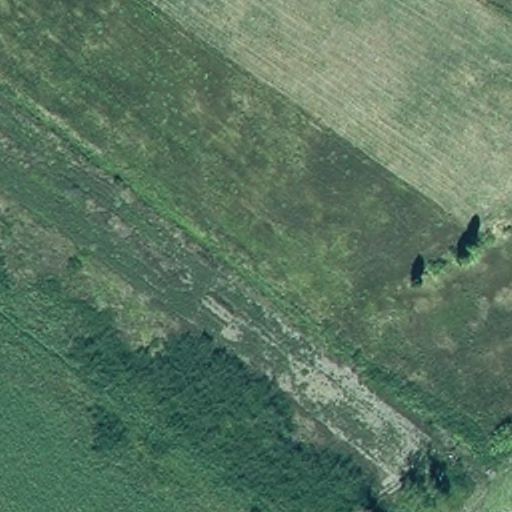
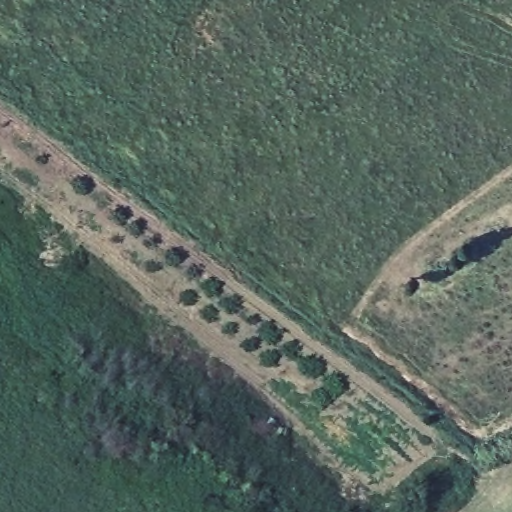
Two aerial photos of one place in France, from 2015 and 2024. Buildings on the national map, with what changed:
unchanged [(286,428),(278,440),(261,428),(269,416),(286,428)]

